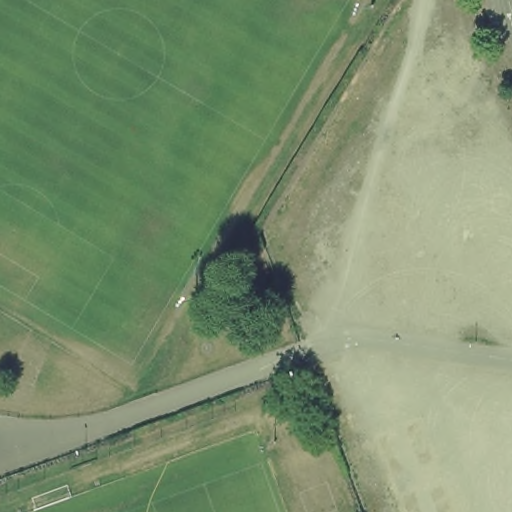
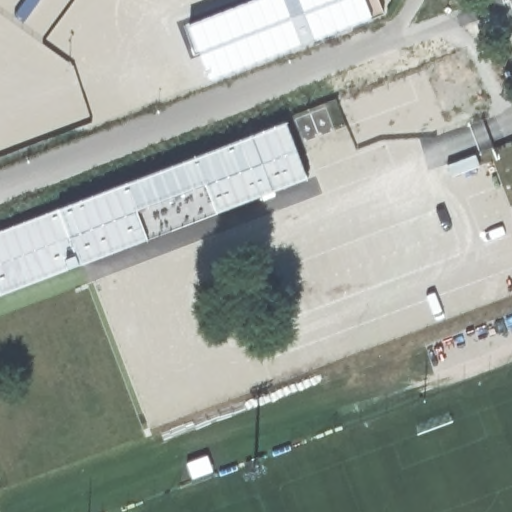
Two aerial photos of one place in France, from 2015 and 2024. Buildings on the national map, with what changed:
new [(382,0),(388,17),(208,85),(185,23),(248,0),(382,0)]
new [(0,298),(0,233),(286,119),(311,181),(0,298)]
new [(289,444),(291,449),(274,455),(272,450),(289,444)]
new [(236,464),(237,469),(221,475),(219,470),(236,464)]

